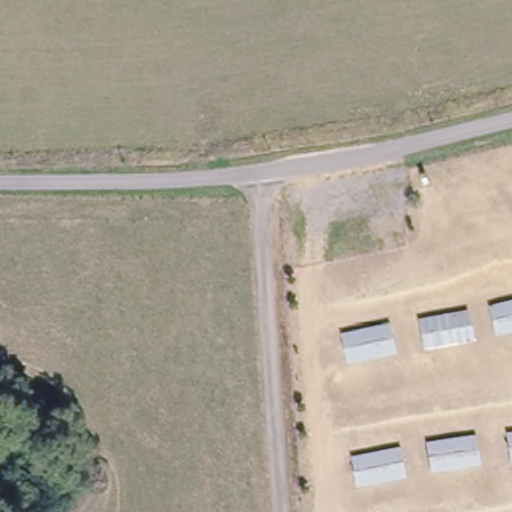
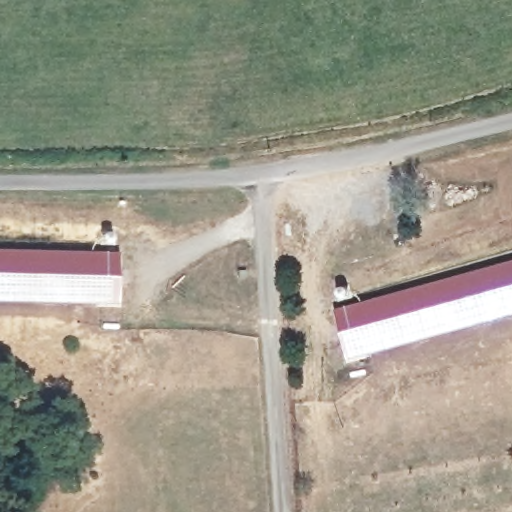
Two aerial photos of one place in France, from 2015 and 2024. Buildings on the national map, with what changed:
demolished [(493,179),(497,212),(446,216),(443,185),(493,179)]
new [(120,306),(0,303),(0,250),(121,252),(120,306)]
new [(349,359),(334,311),(512,261),(512,314),(349,359)]
demolished [(501,335),(494,304),(512,300),(512,333),(501,335)]
demolished [(474,342),(424,352),(417,320),(470,310),(474,342)]
demolished [(400,357),(349,367),(344,336),(396,326),(400,357)]
demolished [(507,466),(504,434),(512,433),(512,465),(507,466)]
demolished [(429,473),(426,442),(479,436),(483,467),(429,473)]
demolished [(407,477),(357,484),(353,452),(402,446),(407,477)]

